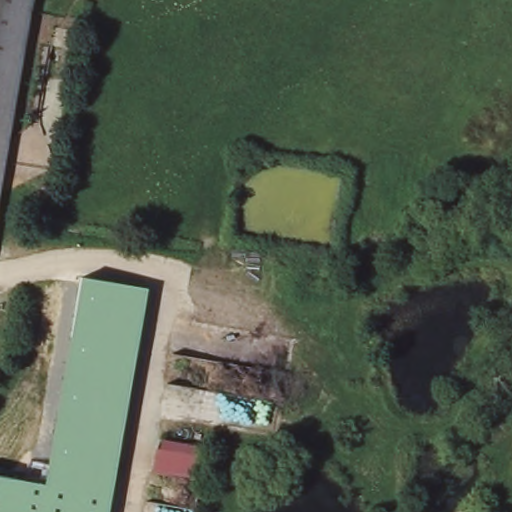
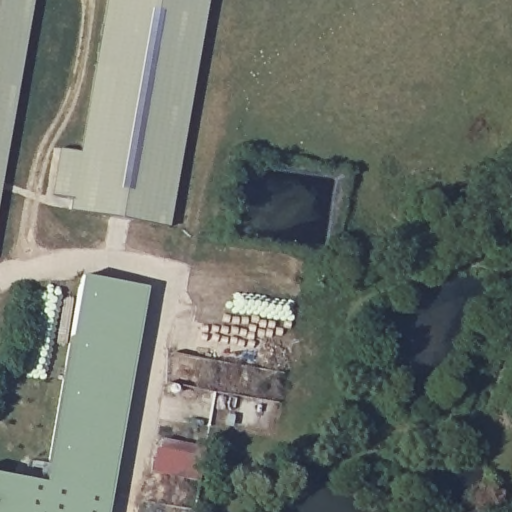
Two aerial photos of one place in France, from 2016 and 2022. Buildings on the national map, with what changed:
unchanged [(0,168),(0,0),(29,0),(0,168)]
new [(64,150),(85,153),(111,0),(210,0),(171,229),(74,213),(76,201),(56,198),(64,150)]
unchanged [(77,273),(143,284),(133,344),(66,333),(77,273)]
unchanged [(66,333),(133,344),(108,491),(42,479),(66,333)]
unchanged [(158,450),(205,458),(201,481),(155,473),(158,450)]
unchanged [(0,512),(0,472),(42,479),(108,491),(105,512),(0,512)]

